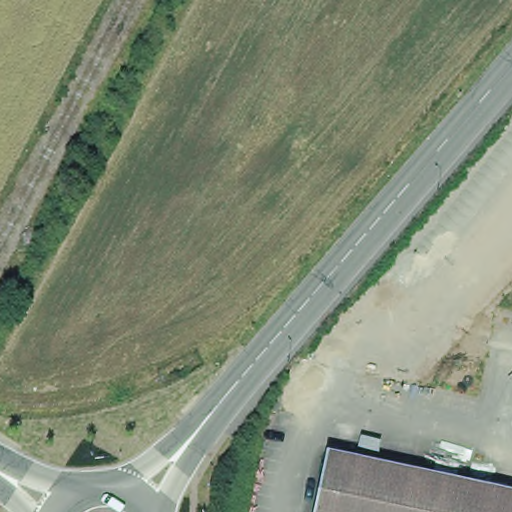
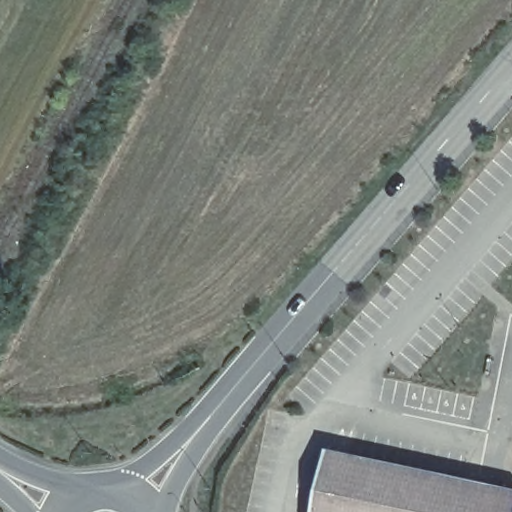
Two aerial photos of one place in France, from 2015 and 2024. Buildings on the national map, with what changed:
unchanged [(324,450),(512,490),(512,512),(310,512),(324,450)]

